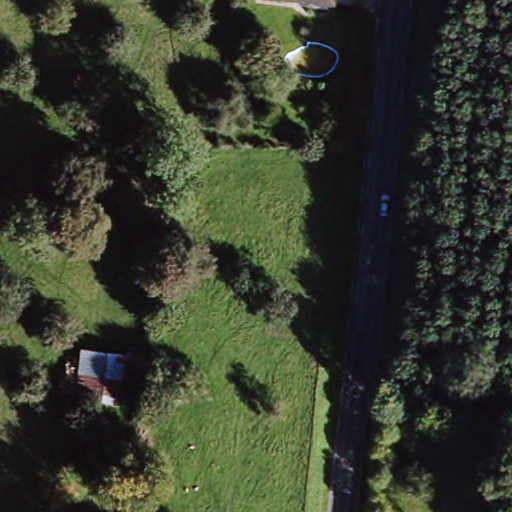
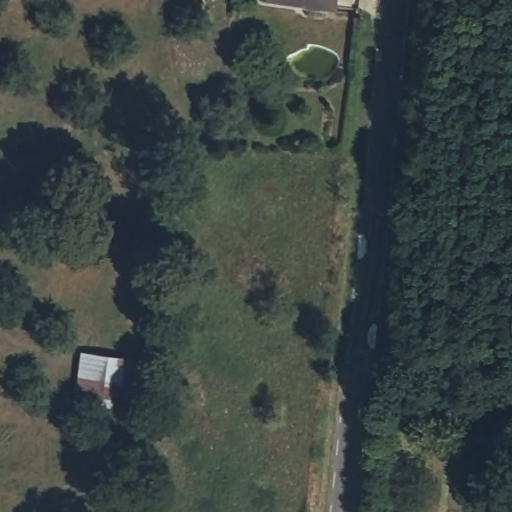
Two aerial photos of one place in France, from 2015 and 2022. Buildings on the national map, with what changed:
unchanged [(140,356),(134,394),(132,403),(97,397),(94,412),(70,409),(79,348),(107,351),(140,356)]

